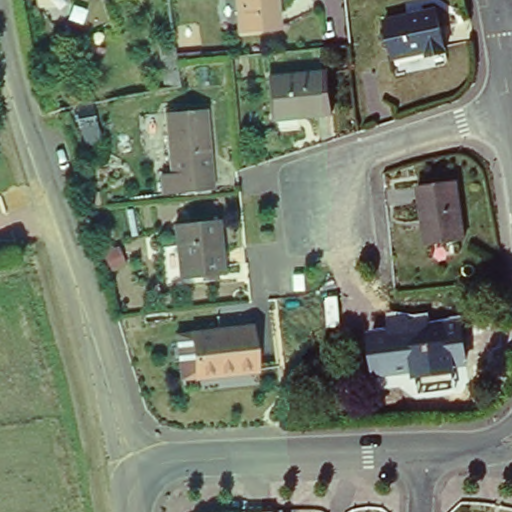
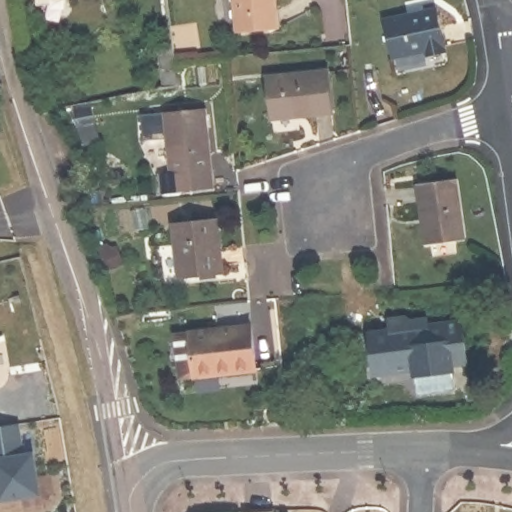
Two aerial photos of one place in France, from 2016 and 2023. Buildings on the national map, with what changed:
unchanged [(274,28),(235,32),(232,0),(271,0),(274,28)]
unchanged [(442,49),(424,53),(423,48),(390,54),(382,18),(433,7),(442,49)]
unchanged [(165,92),(160,41),(174,40),(175,46),(177,64),(180,89),(165,92)]
unchanged [(335,114),(300,117),(300,115),(273,118),(269,78),(329,73),(335,114)]
unchanged [(216,185),(163,189),(161,170),(171,169),(165,108),(208,105),(216,185)]
unchanged [(461,240),(422,245),(414,186),(453,182),(461,240)]
unchanged [(225,274),(181,278),(176,225),(219,221),(225,274)]
unchanged [(463,319),(468,365),(437,368),(430,322),(463,319)]
unchanged [(176,332),(192,330),(252,322),(257,363),(198,371),(181,372),(176,332)]
unchanged [(437,368),(415,371),(414,365),(376,369),(371,330),(430,322),(437,368)]
new [(23,455),(35,454),(39,494),(0,497),(0,426),(19,423),(23,455)]

